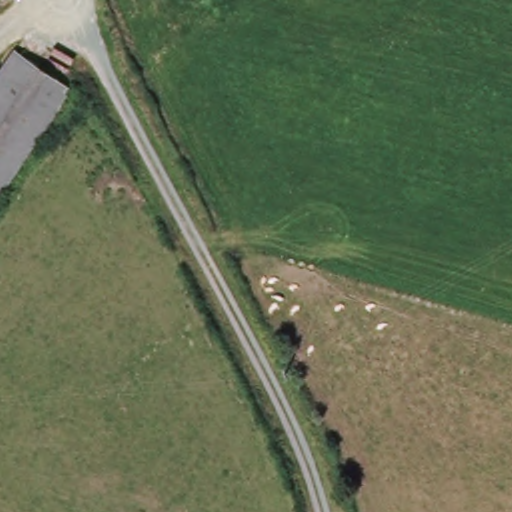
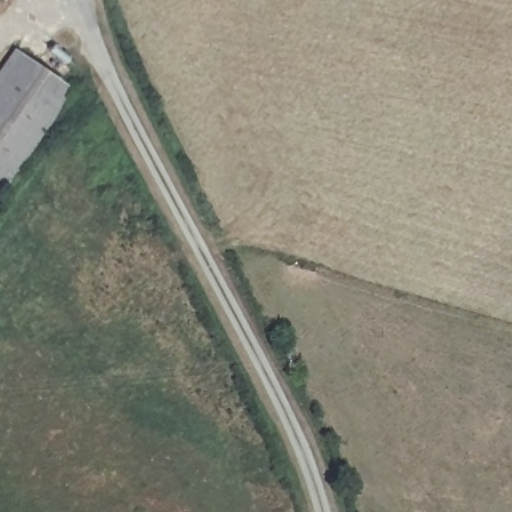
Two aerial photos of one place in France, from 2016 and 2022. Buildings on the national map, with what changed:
unchanged [(2,0),(12,0),(9,5),(2,0)]
unchanged [(0,72),(15,51),(73,92),(0,197),(0,72)]

